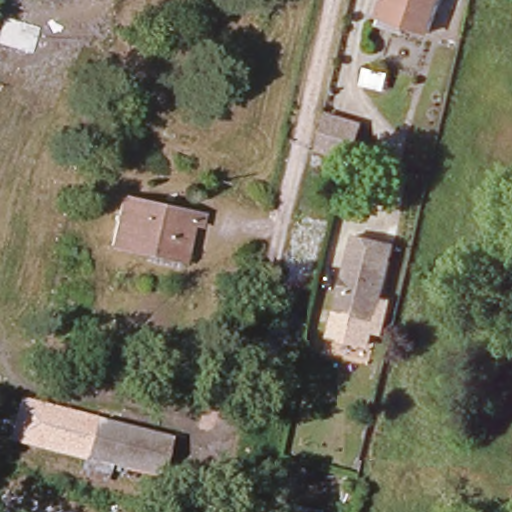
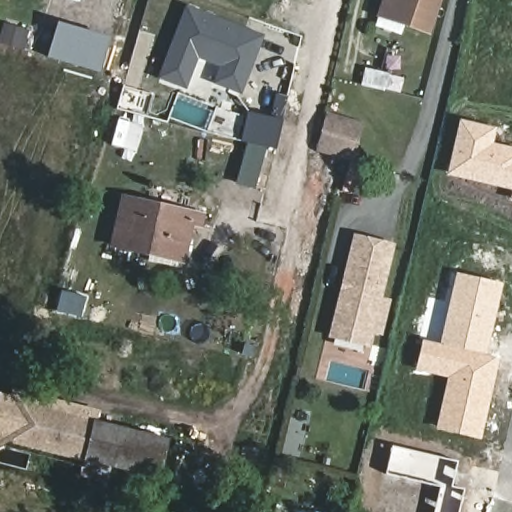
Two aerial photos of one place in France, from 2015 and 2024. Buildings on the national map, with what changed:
unchanged [(402,25),(398,35),(374,25),(383,0),(439,0),(427,33),(402,25)]
new [(192,9),(265,36),(245,90),(221,81),(232,50),(206,41),(189,85),(166,76),(192,9)]
new [(7,19),(40,29),(33,51),(1,42),(7,19)]
unchanged [(312,150),(321,114),(356,125),(346,160),(312,150)]
new [(447,174),(460,120),(496,126),(494,143),(512,147),(512,190),(447,174)]
unchanged [(142,262),(143,255),(106,247),(117,199),(139,203),(138,205),(166,213),(167,209),(197,215),(194,226),(185,224),(175,269),(142,262)]
unchanged [(348,237),(387,248),(372,297),(366,321),(328,311),(348,237)]
unchanged [(328,311),(366,321),(372,297),(387,248),(393,250),(382,298),(391,299),(383,335),(375,334),(371,348),(326,335),(328,311)]
new [(503,284),(486,354),(440,344),(457,270),(503,284)]
new [(416,370),(422,340),(497,357),(478,439),(436,429),(447,378),(416,370)]
unchanged [(19,399),(97,424),(87,463),(9,443),(19,399)]
unchanged [(87,463),(97,424),(171,443),(161,482),(112,468),(108,484),(82,477),(87,463)]
new [(451,486),(463,489),(458,512),(433,512),(438,487),(386,474),(392,446),(458,462),(451,486)]

